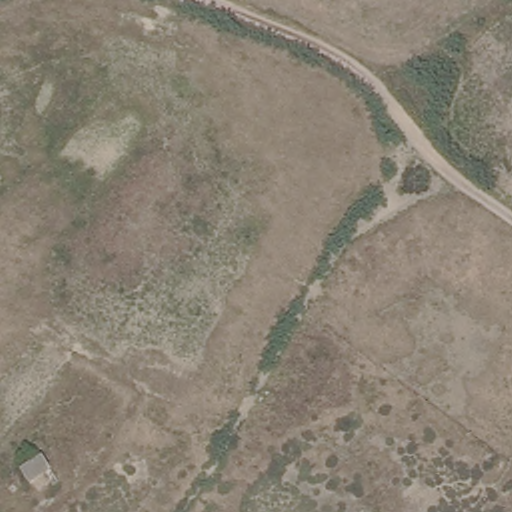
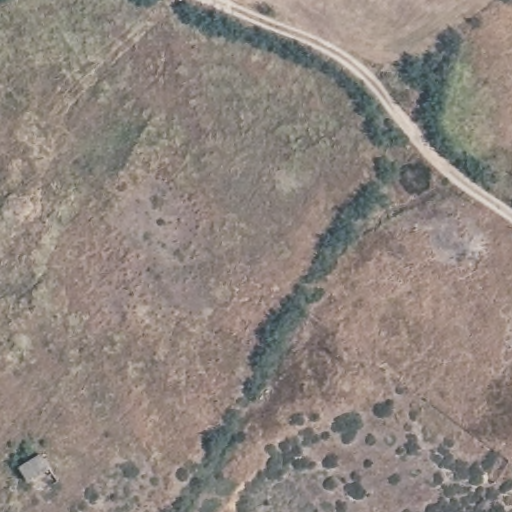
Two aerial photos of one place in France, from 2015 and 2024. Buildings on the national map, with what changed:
unchanged [(54,470),(31,482),(20,466),(44,452),(54,470)]

